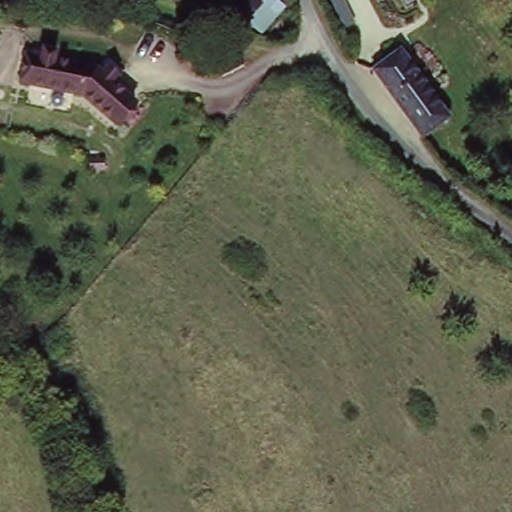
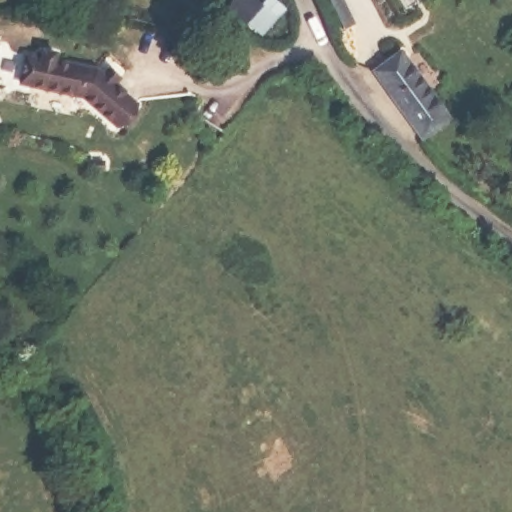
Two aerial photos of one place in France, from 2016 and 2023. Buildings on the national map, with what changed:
unchanged [(227,9),(233,0),(260,0),(262,1),(262,0),(285,0),(291,5),(264,36),(227,9)]
unchanged [(356,20),(343,26),(330,0),(346,0),(356,20)]
unchanged [(446,119),(421,134),(373,63),(400,47),(446,119)]
unchanged [(86,93),(21,85),(26,56),(40,58),(42,49),(58,51),(57,60),(89,64),(86,93)]
unchanged [(106,66),(122,81),(118,86),(141,108),(120,129),(86,93),(89,64),(106,66)]

